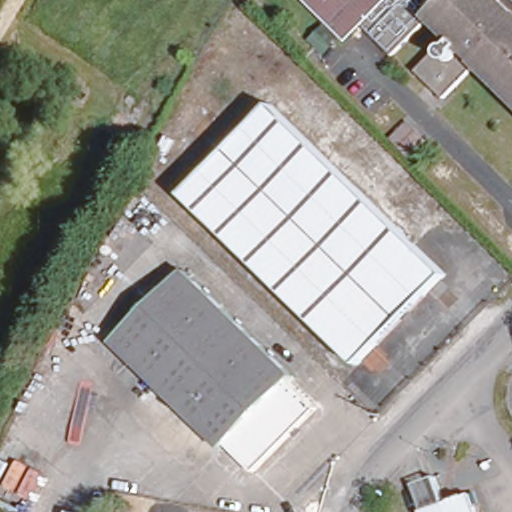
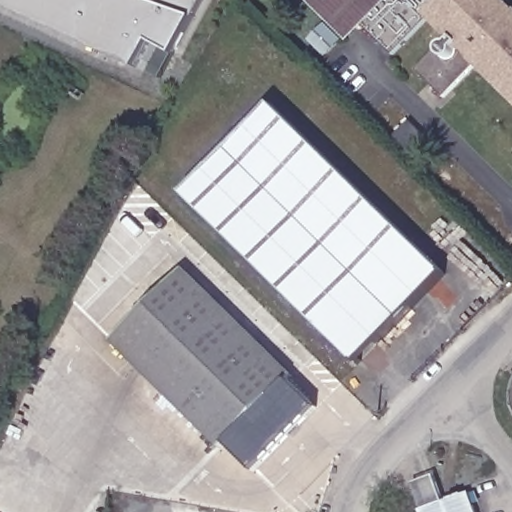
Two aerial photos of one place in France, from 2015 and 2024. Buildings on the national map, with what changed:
new [(173,55),(150,42),(135,69),(0,5),(0,0),(202,0),(192,19),(173,55)]
unchanged [(491,2),(504,16),(503,22),(512,31),(512,105),(460,52),(455,57),(468,71),(436,101),(408,74),(431,51),(434,53),(438,47),(442,47),(446,45),(449,42),(425,17),(386,54),(347,16),(341,22),(330,22),(308,0),(479,0),(480,2),(491,2)]
unchanged [(444,273),(356,362),(183,193),(271,103),(444,273)]
unchanged [(290,378),(219,450),(110,342),(181,273),(290,378)]
new [(255,471),(226,442),(288,381),(316,409),(255,471)]
unchanged [(438,506),(463,499),(467,512),(415,512),(420,511),(411,485),(430,479),(438,506)]

